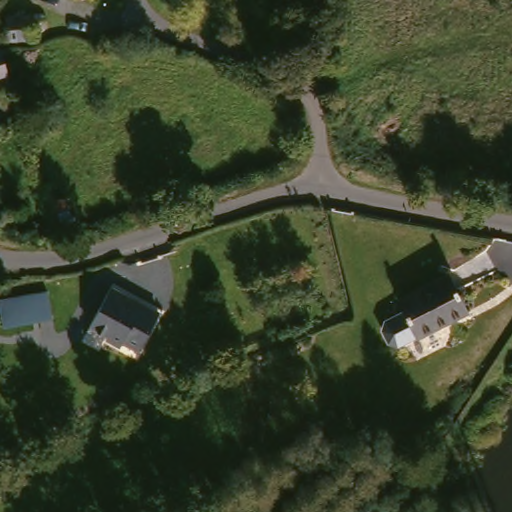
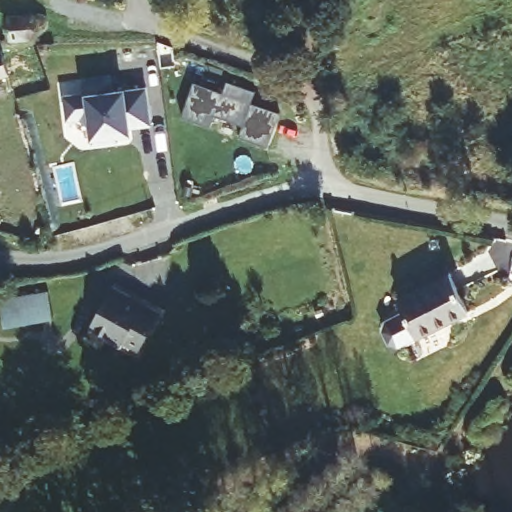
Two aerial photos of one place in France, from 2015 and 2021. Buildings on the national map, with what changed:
unchanged [(43,32),(35,32),(35,40),(9,41),(6,19),(33,13),(33,15),(40,12),(49,23),(43,32)]
unchanged [(0,50),(1,50),(10,74),(0,76),(0,50)]
new [(91,125),(84,117),(67,119),(65,96),(86,94),(84,79),(110,76),(111,92),(124,91),(146,87),(150,125),(129,127),(129,132),(116,134),(116,140),(94,142),(93,137),(91,125)]
unchanged [(469,312),(418,337),(399,299),(449,273),(469,312)]
unchanged [(118,284),(134,294),(135,302),(145,308),(151,306),(164,313),(142,350),(127,341),(125,344),(111,336),(113,333),(95,323),(118,284)]
unchanged [(7,322),(6,297),(56,295),(57,320),(7,322)]

